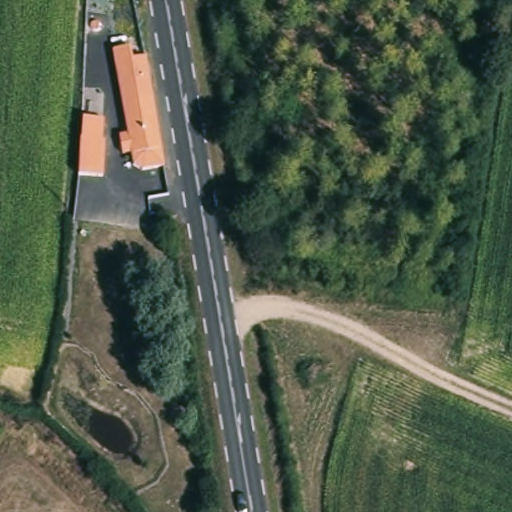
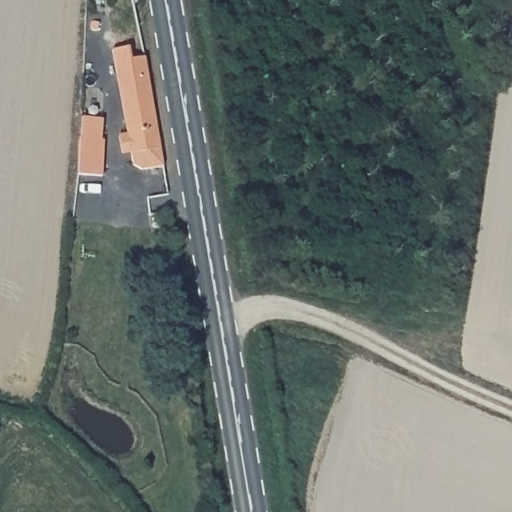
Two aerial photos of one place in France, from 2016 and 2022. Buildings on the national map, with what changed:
unchanged [(129,152),(116,65),(145,61),(160,149),(129,152)]
unchanged [(86,111),(86,91),(98,90),(96,110),(86,111)]
unchanged [(103,181),(75,177),(77,137),(78,118),(100,118),(99,138),(105,139),(103,181)]

